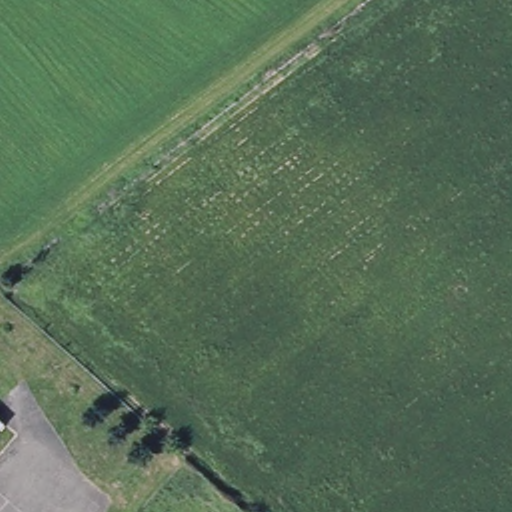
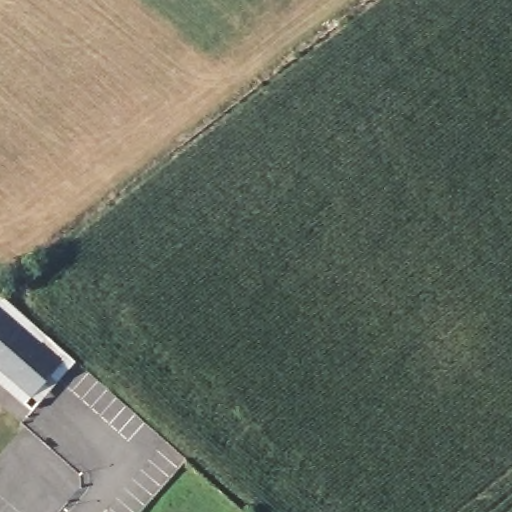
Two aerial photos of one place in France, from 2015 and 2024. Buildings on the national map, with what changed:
new [(30,399),(23,392),(0,372),(0,296),(60,351),(67,357),(30,399)]
demolished [(7,421),(0,430),(0,416),(7,421)]

